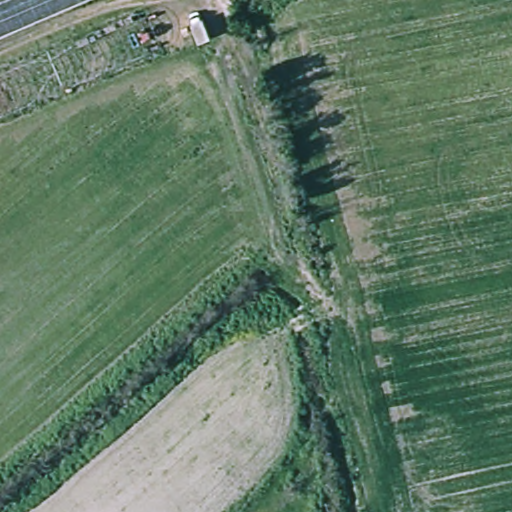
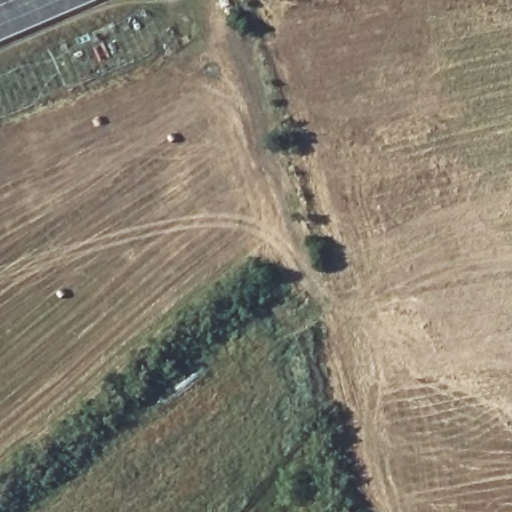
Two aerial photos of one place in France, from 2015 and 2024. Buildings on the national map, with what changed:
unchanged [(0,40),(0,0),(95,0),(0,40)]

